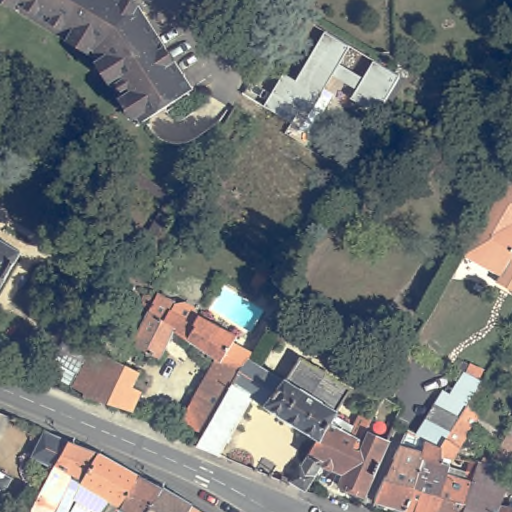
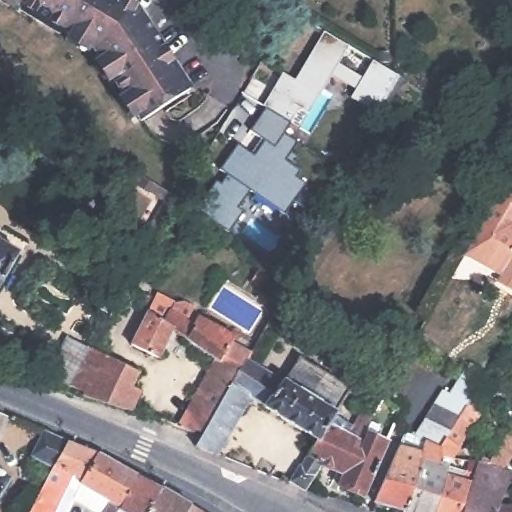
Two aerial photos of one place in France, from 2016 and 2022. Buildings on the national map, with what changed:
unchanged [(136,95),(125,79),(119,82),(106,62),(111,59),(105,51),(99,47),(96,52),(74,39),(77,34),(69,29),(66,33),(44,21),(47,16),(25,3),(22,8),(7,0),(130,0),(129,1),(141,9),(146,6),(173,46),(169,50),(177,62),(182,59),(200,88),(152,121),(150,116),(144,119),(130,98),(136,95)]
unchanged [(377,115),(351,98),(357,89),(332,74),(308,112),(299,107),(291,121),(266,104),(282,72),(295,80),(323,30),(348,46),(338,62),(362,76),(372,60),(400,75),(377,115)]
new [(291,122),(285,133),(297,140),(285,158),(300,168),(295,174),(305,181),(284,213),(249,189),(237,206),(243,210),(229,231),(195,208),(215,179),(220,182),(226,173),(218,168),(236,142),(253,154),(263,139),(249,129),(265,106),(291,122)]
unchanged [(497,276),(500,273),(463,252),(505,179),(512,183),(512,289),(496,279),(497,276)]
unchanged [(0,283),(0,232),(17,241),(16,243),(37,256),(16,292),(0,283)]
unchanged [(249,280),(259,265),(270,272),(260,287),(249,280)]
unchanged [(179,330),(164,359),(137,345),(154,309),(153,309),(151,309),(149,308),(147,306),(146,304),(145,302),(145,300),(146,297),(148,296),(150,294),(153,294),(156,294),(157,296),(159,297),(160,299),(162,293),(181,303),(190,301),(200,307),(204,316),(239,334),(236,340),(255,350),(256,351),(252,357),(230,397),(207,384),(220,360),(179,330)]
unchanged [(96,396),(94,399),(69,390),(81,369),(86,371),(99,345),(110,351),(136,364),(150,371),(142,386),(150,391),(141,411),(115,402),(96,396)]
unchanged [(315,438),(316,433),(256,397),(224,455),(201,446),(207,434),(209,435),(230,397),(252,357),(286,379),(301,355),(352,386),(337,413),(357,425),(365,413),(376,418),(365,440),(332,423),(324,438),(322,437),(320,440),(315,438)]
unchanged [(209,435),(207,434),(183,426),(207,384),(230,397),(209,435)]
unchanged [(437,474),(422,472),(411,511),(408,512),(380,502),(402,451),(411,431),(420,435),(438,405),(463,416),(465,415),(478,424),(464,448),(450,439),(445,448),(449,456),(446,464),(441,463),(437,474)]
unchanged [(293,481),(304,463),(306,464),(311,456),(320,440),(322,437),(324,438),(332,423),(365,440),(363,442),(367,444),(372,434),(392,443),(369,496),(343,485),(347,473),(328,465),(310,491),(293,481)]
unchanged [(477,464),(482,466),(485,461),(487,461),(490,455),(496,459),(512,431),(512,465),(508,470),(512,472),(512,485),(504,506),(502,512),(441,512),(452,476),(471,479),(475,470),(476,471),(477,464)]
unchanged [(30,461),(44,436),(67,446),(99,458),(81,490),(70,512),(33,512),(52,474),(30,461)]
unchanged [(191,512),(104,512),(109,505),(81,490),(99,458),(141,481),(161,494),(171,499),(191,511),(191,512)]
unchanged [(452,476),(441,512),(408,512),(411,511),(422,472),(437,474),(441,463),(446,464),(456,466),(452,476)]
unchanged [(15,478),(0,502),(0,470),(15,478)]
unchanged [(512,512),(502,512),(504,506),(512,508),(512,512)]
unchanged [(192,512),(191,512),(191,511),(192,512)]

